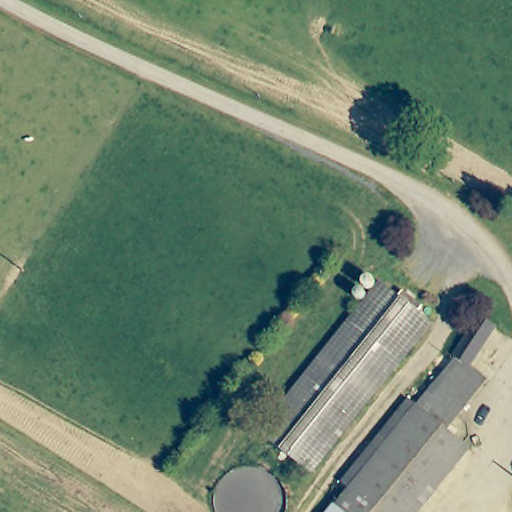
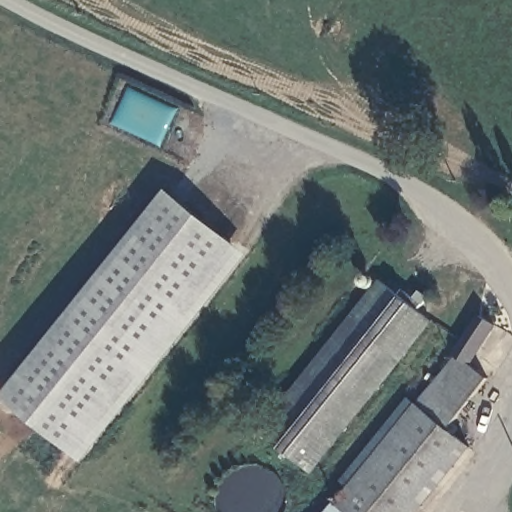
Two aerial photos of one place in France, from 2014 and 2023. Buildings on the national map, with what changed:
new [(2,397),(166,190),(248,255),(84,462),(2,397)]
unchanged [(259,427),(380,275),(398,290),(402,285),(421,301),(417,306),(431,316),(310,468),(259,427)]
unchanged [(428,392),(430,393),(462,353),(458,350),(484,310),(500,319),(474,359),(492,374),(450,424),(421,401),(428,392)]
unchanged [(418,512),(327,512),(340,496),(342,498),(421,401),(450,424),(473,443),(418,512)]

